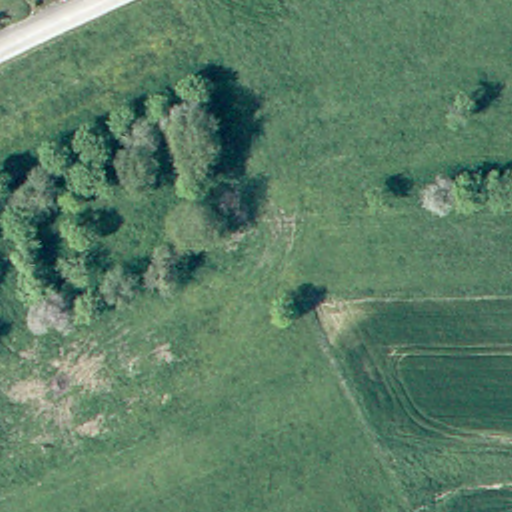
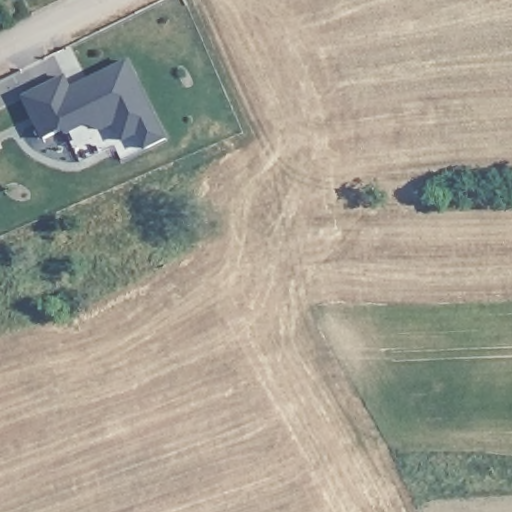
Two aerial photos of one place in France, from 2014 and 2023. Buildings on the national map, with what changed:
new [(127,61),(167,139),(144,150),(137,135),(122,142),(114,126),(100,132),(87,126),(65,137),(63,131),(42,141),(22,97),(66,76),(71,88),(127,61)]

